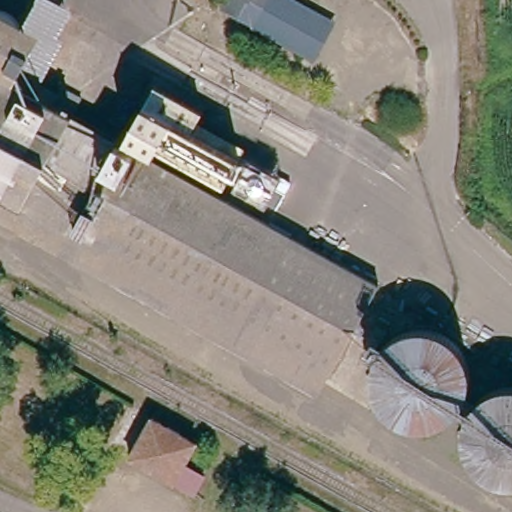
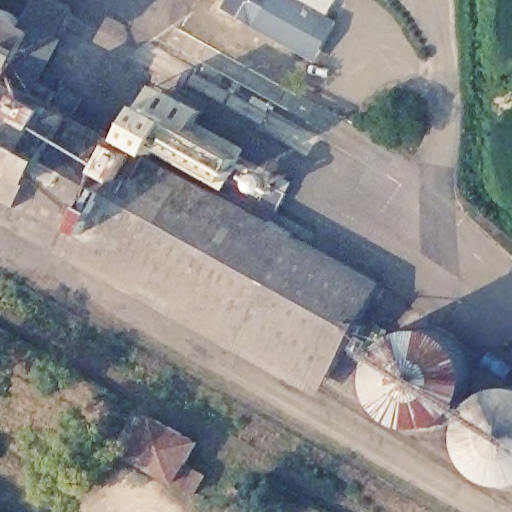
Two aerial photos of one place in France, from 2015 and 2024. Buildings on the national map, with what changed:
unchanged [(58,0),(72,9),(42,60),(36,70),(16,59),(24,45),(50,0),(58,0)]
unchanged [(296,55),(226,0),(297,0),(323,20),(334,30),(307,65),(296,55)]
unchanged [(7,8),(14,12),(19,18),(22,26),(21,42),(12,54),(4,57),(0,58),(0,6),(7,8)]
unchanged [(4,75),(53,104),(61,90),(84,104),(77,117),(123,142),(221,197),(381,286),(330,378),(0,194),(0,82),(4,75)]
unchanged [(158,81),(242,129),(232,149),(244,156),(221,197),(123,142),(158,81)]
unchanged [(470,363),(470,380),(466,395),(457,407),(445,415),(431,420),(417,420),(402,416),(391,408),(382,397),(376,383),(376,368),(380,355),(387,342),(398,332),(413,327),(428,326),(442,330),(456,339),(465,351),(467,356),(470,363)]
unchanged [(373,338),(382,344),(373,360),(363,355),(373,338)]
unchanged [(512,481),(498,479),(485,472),(474,461),(467,447),(465,432),(467,417),(475,404),(486,393),(498,386),(507,385),(512,384),(512,481)]
unchanged [(156,417),(200,444),(187,465),(206,477),(195,495),(132,456),(156,417)]
unchanged [(229,497),(241,505),(236,512),(220,512),(229,497)]

